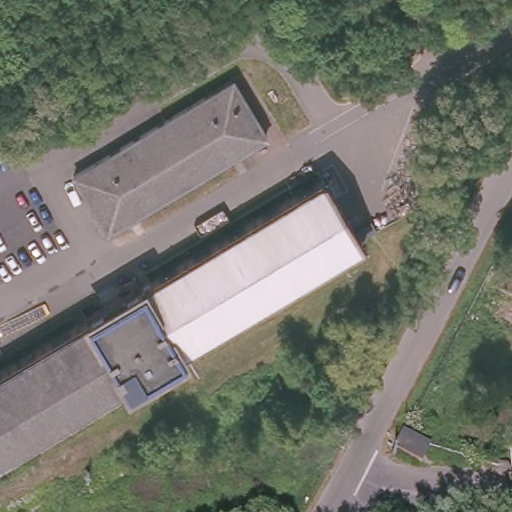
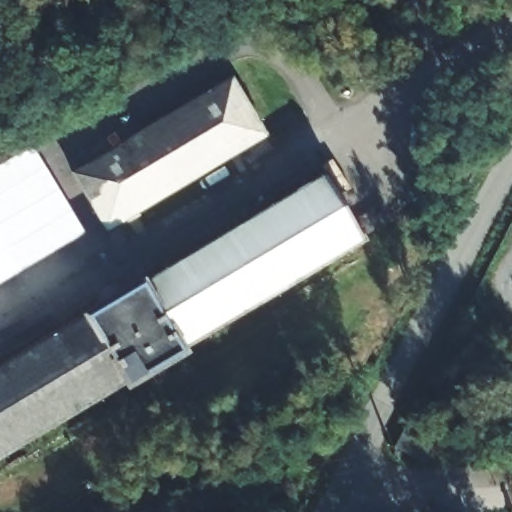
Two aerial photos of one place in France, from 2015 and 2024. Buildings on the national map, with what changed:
unchanged [(231,79),(265,135),(100,231),(67,175),(231,79)]
new [(0,283),(0,165),(32,146),(82,235),(0,283)]
unchanged [(357,242),(0,451),(0,366),(320,179),(357,242)]
unchanged [(434,443),(422,465),(390,447),(404,426),(434,443)]

